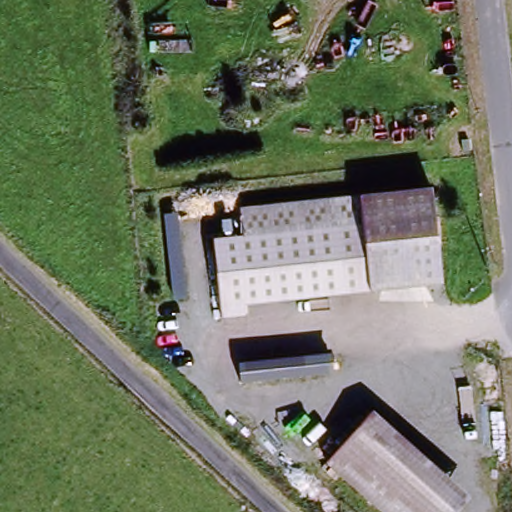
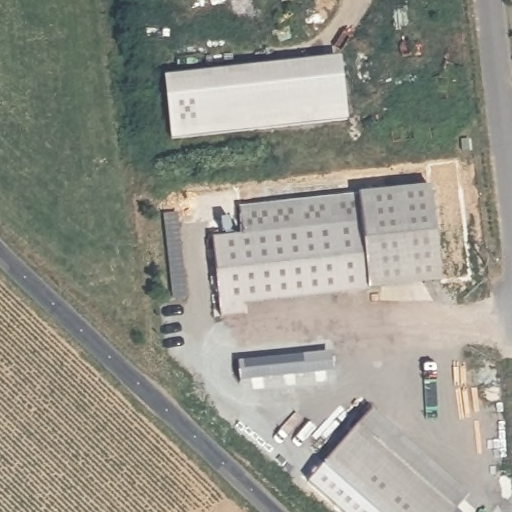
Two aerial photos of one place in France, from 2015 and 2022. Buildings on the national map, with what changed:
new [(341,57),(349,120),(170,141),(163,76),(341,57)]
unchanged [(239,207),(431,186),(443,287),(366,296),(366,290),(350,291),(348,287),(337,221),(263,233),(241,237),(239,207)]
new [(180,217),(189,298),(177,300),(168,219),(180,217)]
unchanged [(348,287),(243,303),(245,315),(222,319),(210,242),(337,221),(348,287)]
new [(330,351),(333,372),(241,383),(237,361),(330,351)]
unchanged [(471,496),(457,512),(378,512),(321,464),(371,410),(471,496)]

